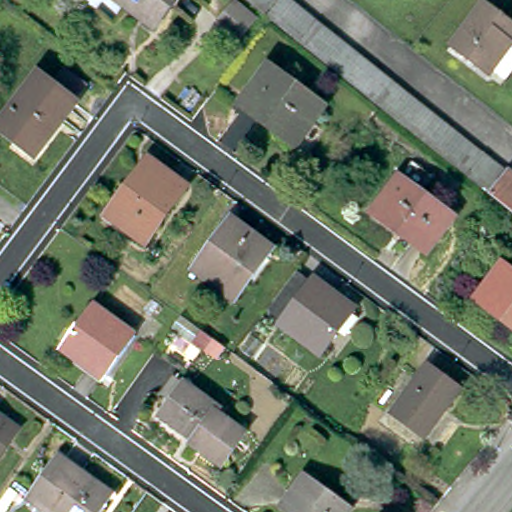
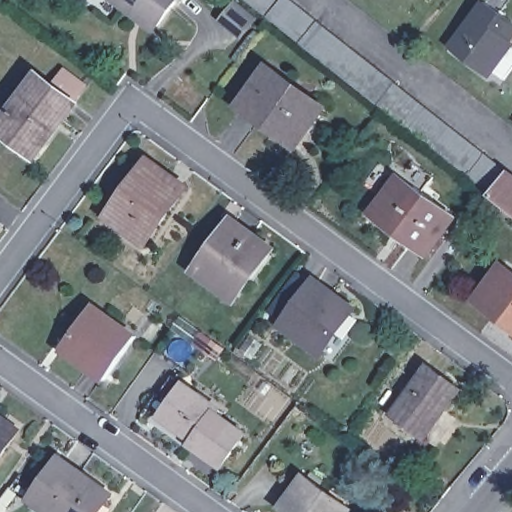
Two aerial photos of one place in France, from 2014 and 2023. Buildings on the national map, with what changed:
unchanged [(126,0),(178,0),(159,25),(126,0)]
unchanged [(248,0),(278,0),(266,15),(248,0)]
unchanged [(464,172),(269,17),(268,16),(281,0),(290,0),(481,151),(507,172),(491,194),(464,172)]
unchanged [(486,1),(512,21),(512,42),(505,50),(509,53),(489,76),(451,47),(486,1)]
unchanged [(221,20),(233,5),(253,20),(242,35),(221,20)]
unchanged [(61,64),(81,80),(69,95),(73,98),(32,151),(0,126),(0,117),(35,70),(49,80),(61,64)]
unchanged [(271,65),(325,105),(296,145),(243,105),(271,65)]
unchanged [(150,157),(189,186),(146,245),(108,215),(150,157)]
unchanged [(493,195),(512,171),(512,210),(493,195)]
unchanged [(401,179),(454,216),(427,251),(375,213),(401,179)]
unchanged [(233,220),(271,248),(236,298),(197,270),(233,220)]
unchanged [(504,267),(512,273),(512,324),(479,300),(504,267)]
unchanged [(272,317),(304,275),(320,287),(289,330),(272,317)]
unchanged [(320,287),(321,285),(359,313),(325,358),(288,331),(289,330),(320,287)]
unchanged [(94,305),(136,337),(105,381),(62,350),(94,305)]
unchanged [(429,365),(464,390),(428,440),(393,415),(429,365)]
unchanged [(197,441),(163,416),(186,385),(220,410),(217,414),(245,435),(223,465),(194,444),(197,441)]
unchanged [(0,460),(0,415),(21,430),(0,460)]
unchanged [(99,512),(49,512),(31,499),(62,457),(94,480),(108,490),(105,495),(109,497),(99,512)]
unchanged [(304,475),(354,511),(354,512),(286,512),(281,508),(304,475)]

